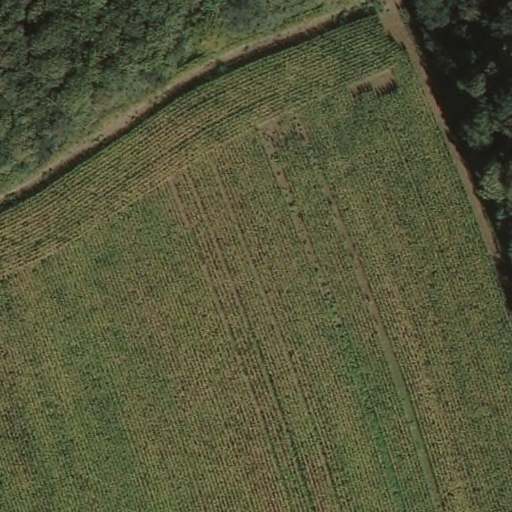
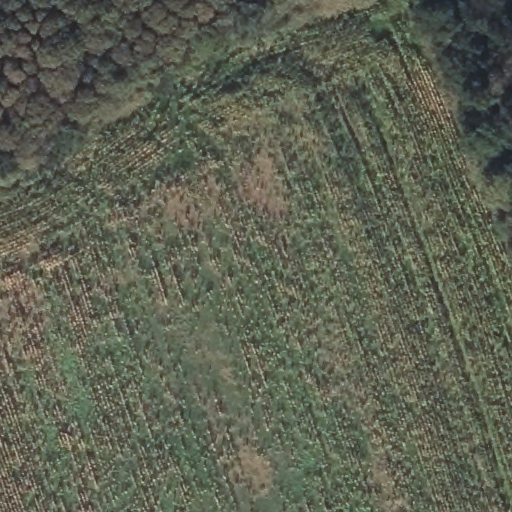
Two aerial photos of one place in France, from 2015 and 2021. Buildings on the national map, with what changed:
[]

